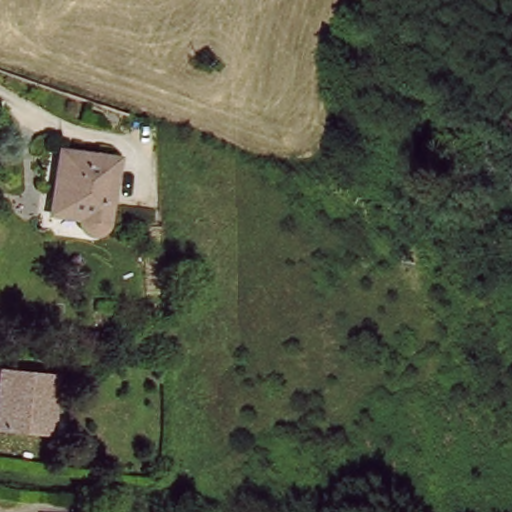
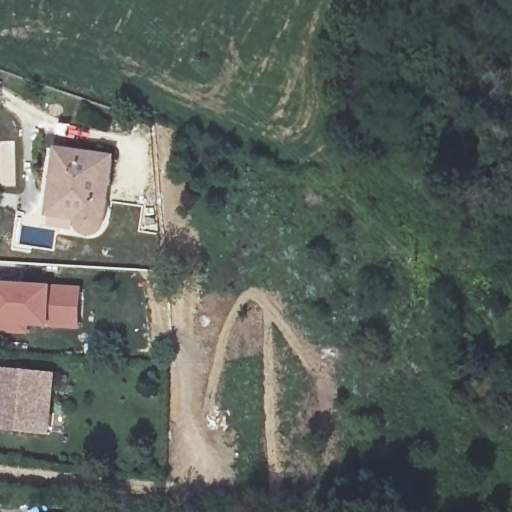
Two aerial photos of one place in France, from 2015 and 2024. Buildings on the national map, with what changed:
unchanged [(60,182),(63,148),(118,153),(112,215),(110,223),(101,229),(91,229),(86,222),(86,213),(68,210),(56,209),(60,182)]
new [(85,289),(81,330),(50,328),(31,327),(30,337),(0,335),(0,282),(53,286),(85,289)]
unchanged [(48,439),(23,437),(0,435),(0,378),(53,383),(48,439)]

